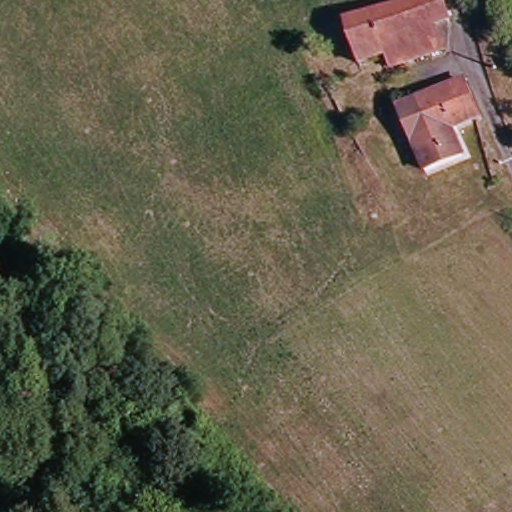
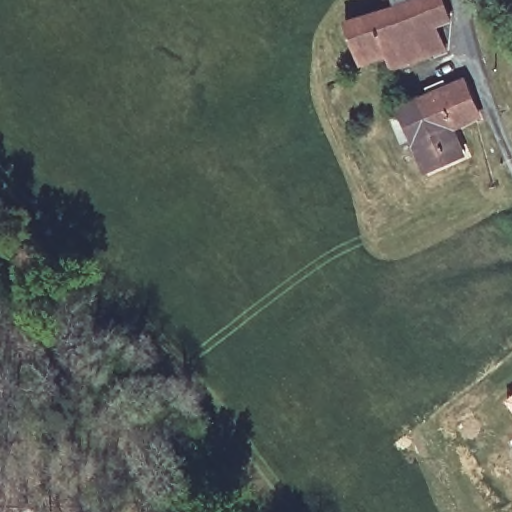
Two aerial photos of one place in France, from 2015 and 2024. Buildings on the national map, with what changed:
unchanged [(396,67),(393,58),(363,64),(350,24),(432,0),(447,0),(452,22),(442,24),(451,52),(396,67)]
unchanged [(464,153),(429,168),(404,104),(470,79),(484,115),(455,126),(464,153)]
new [(512,409),(504,399),(512,393),(512,409)]

